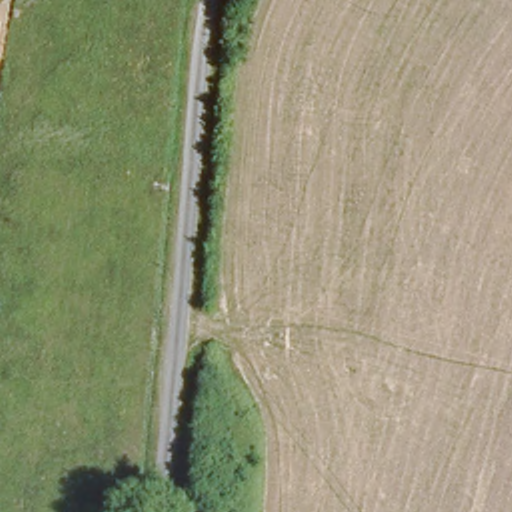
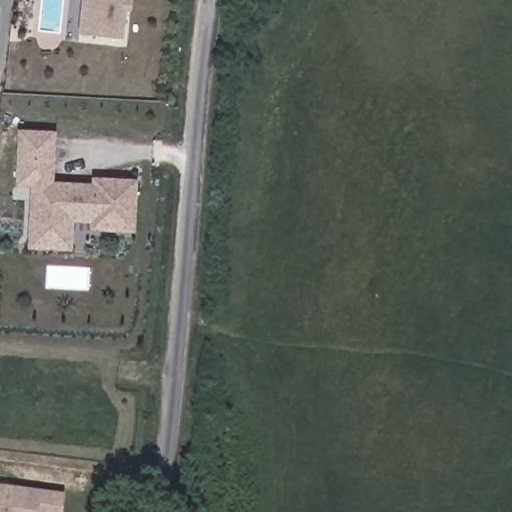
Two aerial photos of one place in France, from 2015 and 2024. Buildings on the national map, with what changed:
new [(123,39),(77,35),(81,0),(131,0),(130,11),(125,11),(123,39)]
new [(92,178),(133,179),(132,237),(92,236),(91,249),(29,246),(32,185),(17,184),(19,148),(53,149),(50,183),(92,184),(92,178)]
new [(0,512),(0,485),(60,493),(59,512),(0,512)]

